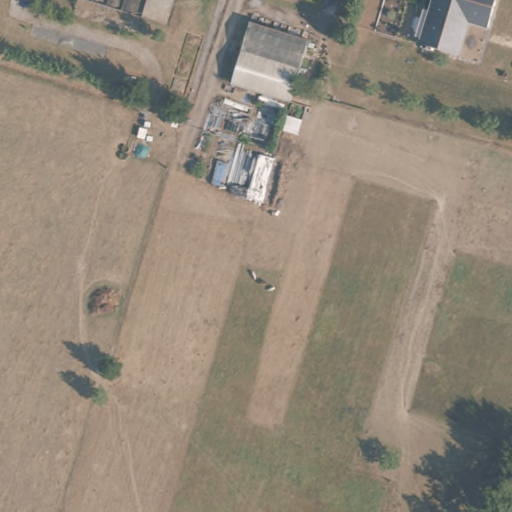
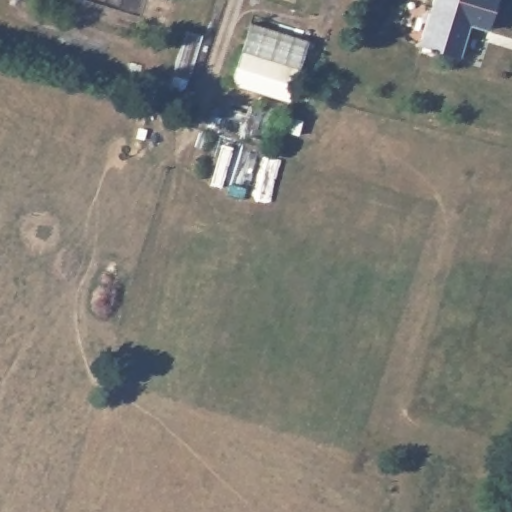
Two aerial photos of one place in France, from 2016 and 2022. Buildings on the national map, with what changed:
unchanged [(471,25),(460,57),(423,46),(437,0),(499,0),(489,30),(471,25)]
unchanged [(233,85),(253,23),(312,44),(296,102),(233,85)]

